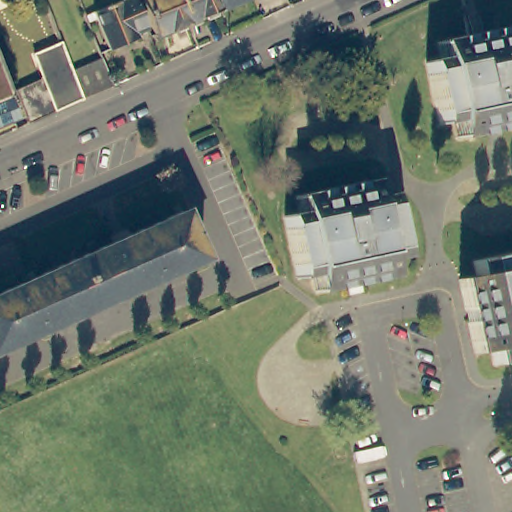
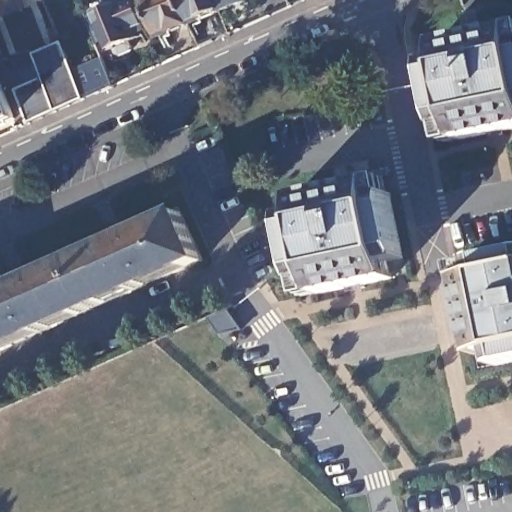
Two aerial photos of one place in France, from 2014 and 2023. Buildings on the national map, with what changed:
unchanged [(146,0),(156,26),(146,31),(148,35),(120,48),(105,11),(131,0),(146,0)]
unchanged [(166,36),(152,0),(189,0),(198,23),(166,36)]
unchanged [(198,23),(189,0),(226,0),(230,9),(198,23)]
unchanged [(253,0),(230,9),(226,0),(253,0)]
unchanged [(472,19),(485,16),(489,36),(512,31),(512,132),(467,142),(464,124),(450,127),(436,65),(450,61),(447,45),(476,39),(472,19)]
unchanged [(35,56),(62,45),(71,69),(72,70),(101,58),(114,85),(83,99),(56,111),(43,117),(29,124),(15,91),(29,85),(44,79),(35,56)]
unchanged [(12,119),(0,124),(0,87),(12,119)]
unchanged [(373,175),(377,192),(391,189),(404,250),(390,254),(393,272),(319,288),(315,269),(300,273),(287,210),(302,208),(299,191),(373,175)]
unchanged [(184,211),(206,260),(0,351),(0,293),(184,211)]
unchanged [(512,369),(502,371),(500,356),(479,359),(466,283),(484,279),(481,262),(512,257),(512,369)]

